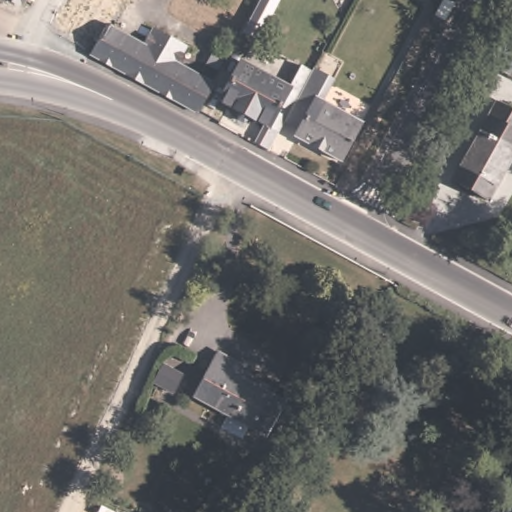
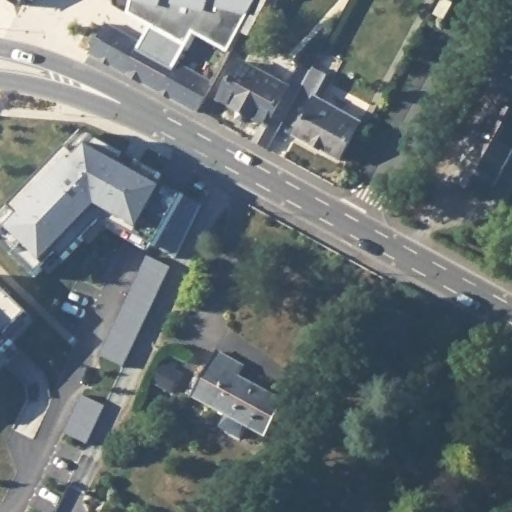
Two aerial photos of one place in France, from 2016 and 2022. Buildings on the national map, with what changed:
unchanged [(10,0),(21,0),(19,4),(10,0)]
new [(129,1),(125,0),(280,0),(259,41),(241,32),(229,55),(194,36),(187,48),(185,46),(151,28),(126,14),(129,1)]
unchanged [(96,39),(108,27),(141,45),(151,28),(185,46),(176,62),(214,84),(198,112),(90,52),(96,39)]
unchanged [(512,51),(512,76),(500,70),(512,51)]
unchanged [(338,159),(295,135),(299,130),(284,121),(267,151),(253,143),(263,125),(247,116),(240,121),(235,118),(235,110),(220,102),(242,62),(289,87),(297,72),(300,67),(311,73),(314,68),(328,76),(336,81),(329,92),(324,101),(358,121),(338,159)]
unchanged [(512,104),(512,160),(492,193),(457,175),(500,97),(512,104)]
new [(0,229),(0,218),(10,208),(69,148),(76,153),(91,138),(160,174),(156,181),(183,196),(202,204),(176,259),(156,247),(103,218),(63,259),(57,253),(36,276),(0,243),(0,234),(3,231),(0,229)]
new [(146,256),(171,267),(125,367),(100,356),(146,256)]
new [(6,335),(13,342),(0,356),(0,289),(26,314),(6,335)]
unchanged [(242,365),(237,375),(289,403),(273,434),(194,395),(217,351),(242,365)]
new [(81,395),(105,406),(88,445),(63,433),(81,395)]

